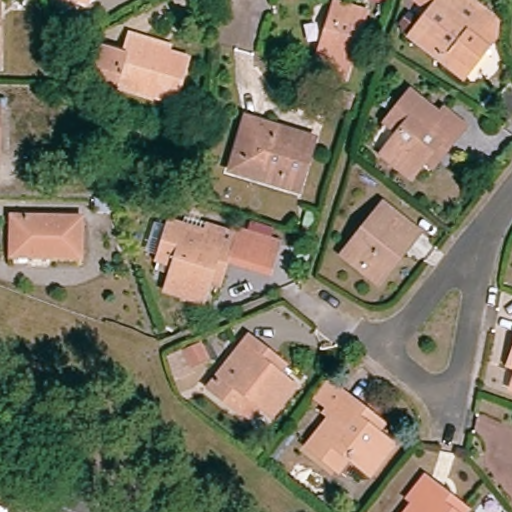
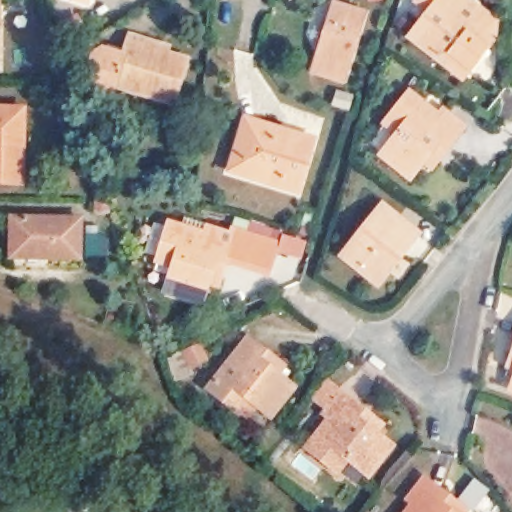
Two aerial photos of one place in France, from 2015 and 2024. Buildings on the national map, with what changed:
unchanged [(83,0),(86,0),(86,1),(83,0)]
unchanged [(406,39),(424,15),(412,6),(417,0),(457,0),(482,19),(486,22),(478,34),(485,40),(456,78),(406,39)]
unchanged [(311,71),(315,58),(333,5),(362,14),(345,67),(341,80),(311,71)]
unchanged [(91,87),(88,80),(91,67),(104,62),(106,56),(124,61),(129,47),(142,51),(161,57),(161,60),(187,68),(172,113),(113,94),(109,104),(96,100),(91,87)]
unchanged [(424,161),(409,179),(382,156),(398,134),(385,124),(409,95),(438,118),(443,112),(463,128),(446,149),(432,167),(424,161)]
new [(0,104),(27,105),(25,185),(0,184),(0,104)]
unchanged [(233,156),(244,121),(276,130),(285,133),(311,141),(297,193),(257,180),(228,171),(233,156)]
unchanged [(376,282),(342,252),(383,204),(417,232),(406,245),(386,270),(376,282)]
unchanged [(210,280),(202,300),(170,287),(180,262),(164,256),(177,219),(210,231),(212,225),(234,234),(234,231),(258,237),(280,244),(270,273),(249,266),(228,260),(219,283),(210,280)]
unchanged [(50,256),(11,255),(11,220),(81,221),(81,259),(50,259),(50,256)]
unchanged [(264,416),(244,401),(234,412),(203,388),(244,339),(259,351),(278,367),(271,375),(287,388),(264,416)]
unchanged [(510,347),(512,341),(512,396),(503,393),(510,373),(501,370),(510,347)]
unchanged [(375,475),(362,466),(352,478),(312,448),(336,419),(330,414),(346,394),(368,410),(387,425),(381,433),(397,446),(375,475)]
unchanged [(407,508),(400,502),(416,483),(436,500),(450,512),(403,512),(407,508)]

